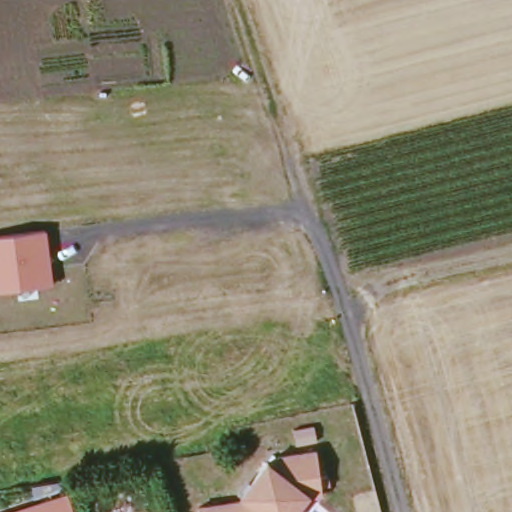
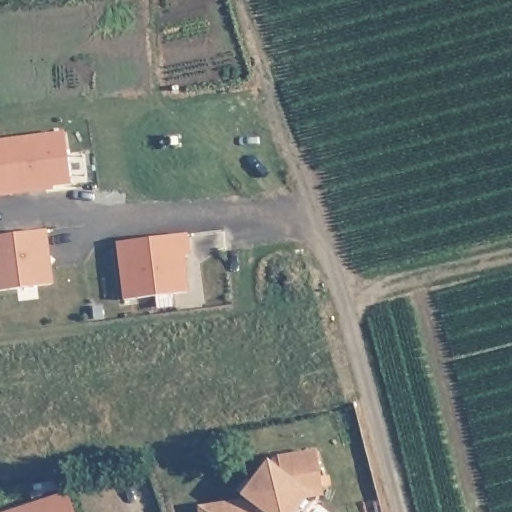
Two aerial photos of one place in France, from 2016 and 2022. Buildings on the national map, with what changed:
new [(0,192),(0,141),(64,132),(70,184),(0,192)]
unchanged [(0,293),(0,237),(47,231),(53,286),(0,293)]
new [(123,299),(115,243),(187,235),(189,256),(185,256),(189,291),(123,299)]
unchanged [(244,500),(265,464),(269,467),(275,458),(314,453),(319,489),(320,497),(305,499),(297,512),(210,512),(248,507),(244,500)]
unchanged [(72,512),(19,512),(67,497),(72,512)]

